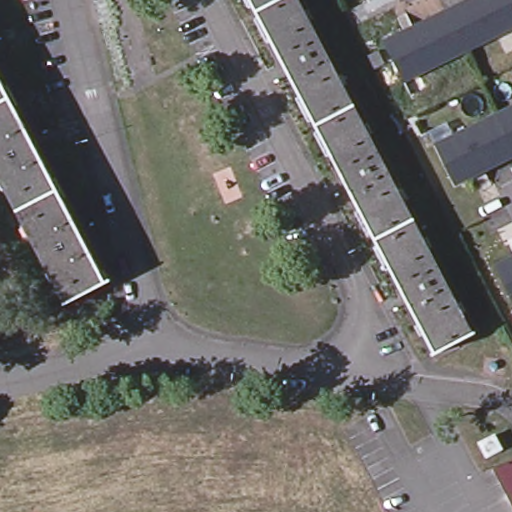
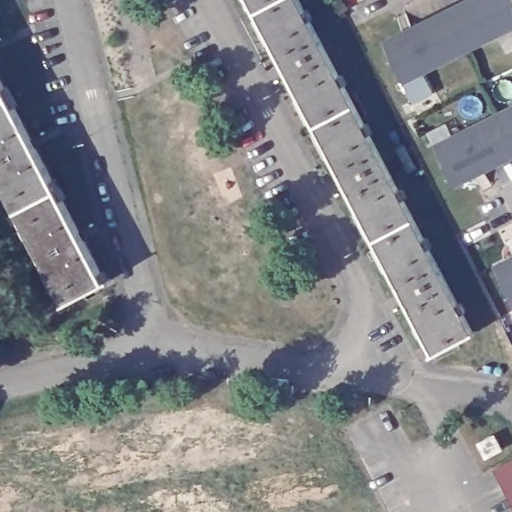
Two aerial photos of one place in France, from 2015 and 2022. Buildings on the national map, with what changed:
unchanged [(267,0),(253,8),(249,0),(267,0)]
unchanged [(267,0),(298,0),(350,100),(313,121),(253,8),(267,0)]
unchanged [(440,9),(455,0),(512,0),(512,20),(460,49),(426,67),(413,74),(393,34),(405,27),(440,9)]
unchanged [(8,93),(0,97),(0,77),(8,93)]
unchanged [(0,172),(0,97),(8,93),(57,186),(18,206),(0,172)]
unchanged [(313,121),(350,100),(411,216),(373,236),(313,121)]
unchanged [(453,185),(433,145),(460,131),(495,114),(512,105),(512,156),(481,171),(453,185)]
unchanged [(106,278),(67,299),(18,206),(57,186),(106,278)]
unchanged [(373,236),(411,216),(472,331),(434,351),(373,236)]
unchanged [(512,257),(512,302),(494,266),(512,257)]
unchanged [(512,458),(512,504),(493,468),(512,458)]

